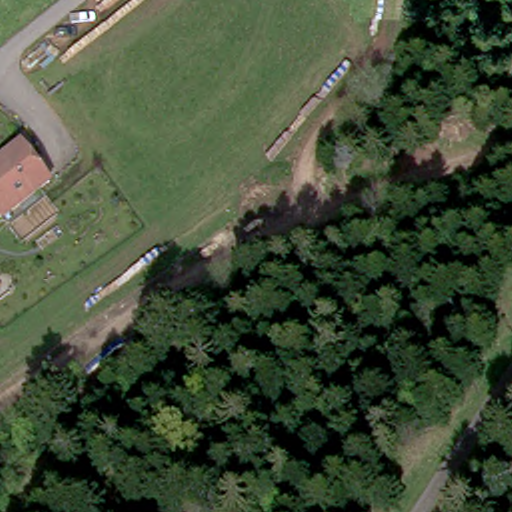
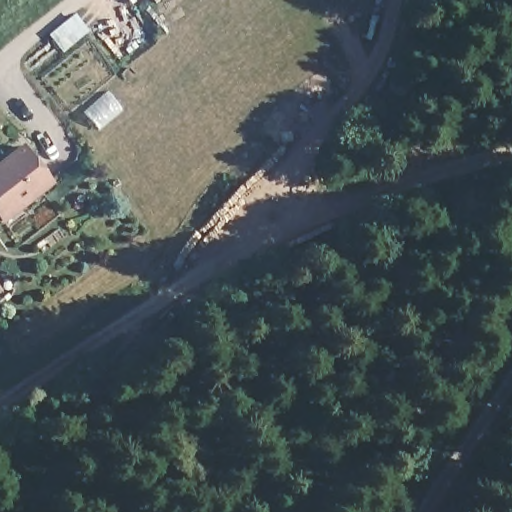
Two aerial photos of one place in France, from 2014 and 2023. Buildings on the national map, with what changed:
unchanged [(49,175),(5,212),(4,210),(0,213),(0,158),(19,141),(49,175)]
unchanged [(0,273),(6,268),(11,264),(20,274),(16,279),(4,289),(0,285),(0,273)]

